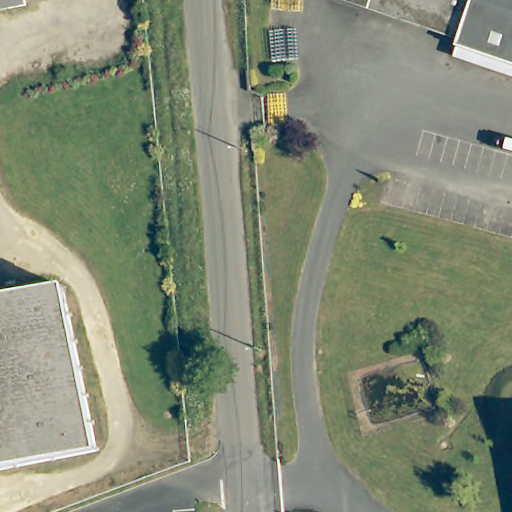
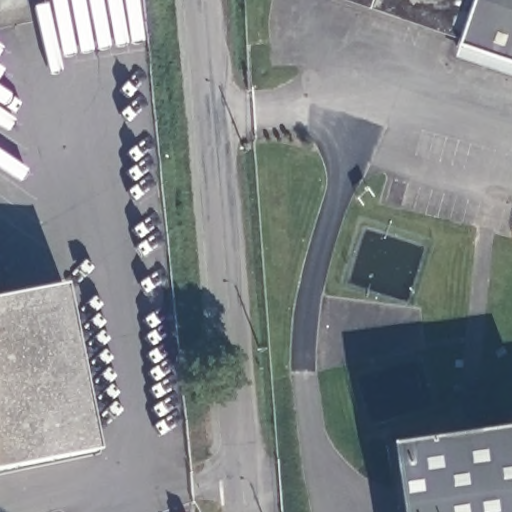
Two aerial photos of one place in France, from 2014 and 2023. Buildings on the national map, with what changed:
unchanged [(17,0),(31,0),(33,10),(6,15),(4,2),(17,0)]
unchanged [(457,32),(364,0),(512,0),(512,62),(453,41),(457,32)]
unchanged [(67,285),(99,451),(0,471),(0,297),(67,285)]
new [(387,446),(512,427),(512,512),(397,512),(387,446)]

